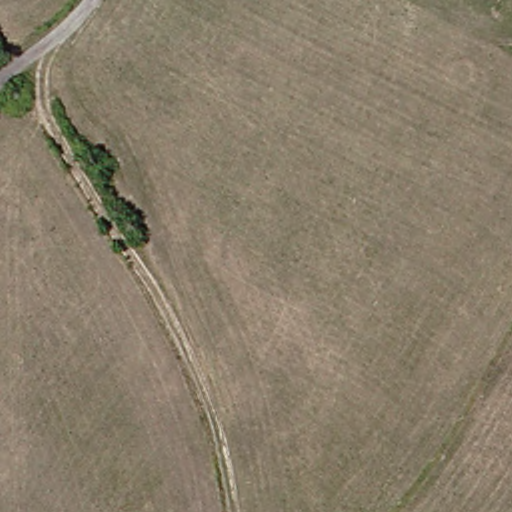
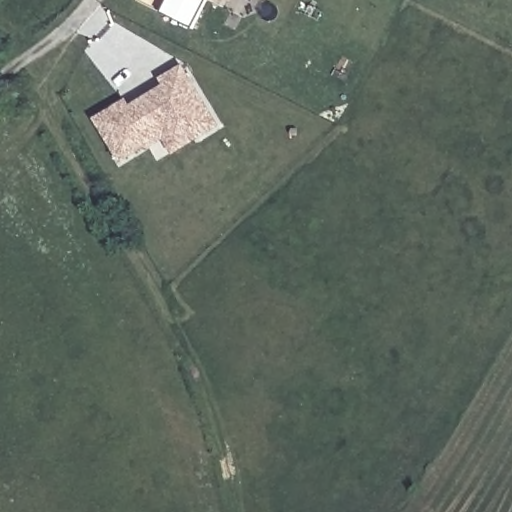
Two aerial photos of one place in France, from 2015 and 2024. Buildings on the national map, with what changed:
new [(162,135),(146,145),(145,142),(118,158),(94,117),(123,100),(127,106),(134,102),(165,84),(161,77),(181,66),(215,125),(196,135),(171,150),(162,135)]

